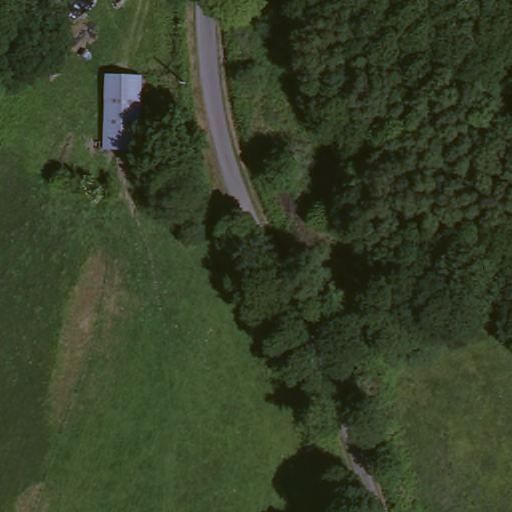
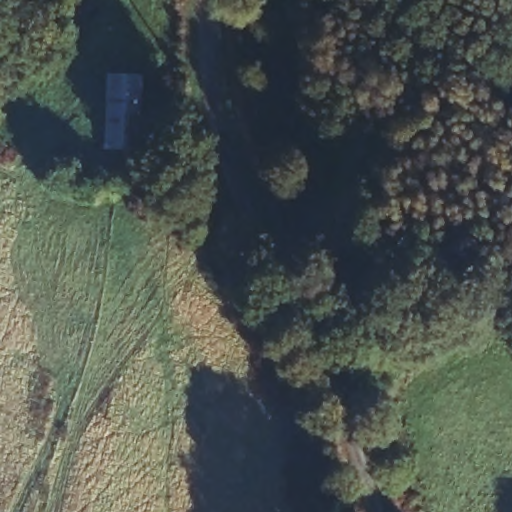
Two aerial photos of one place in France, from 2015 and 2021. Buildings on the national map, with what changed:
unchanged [(137,72),(135,149),(96,147),(99,75),(137,72)]

